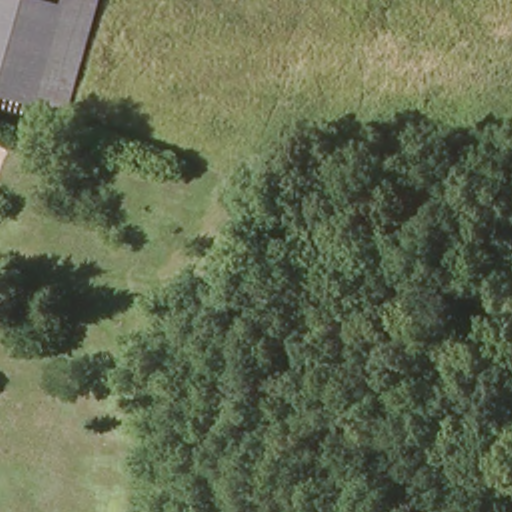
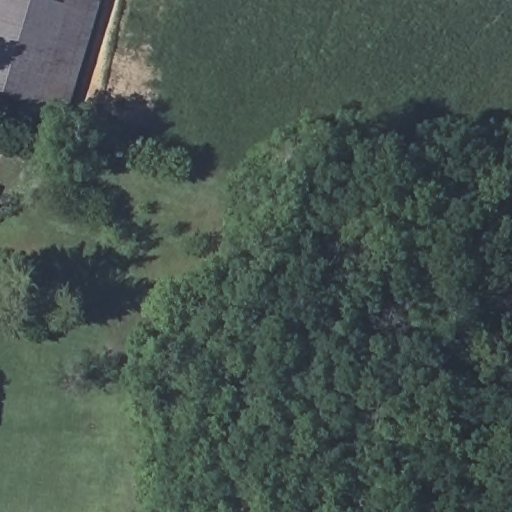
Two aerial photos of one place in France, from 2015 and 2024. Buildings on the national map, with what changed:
unchanged [(64,0),(87,0),(99,4),(64,117),(0,99),(0,0),(20,0),(61,12),(64,0)]

